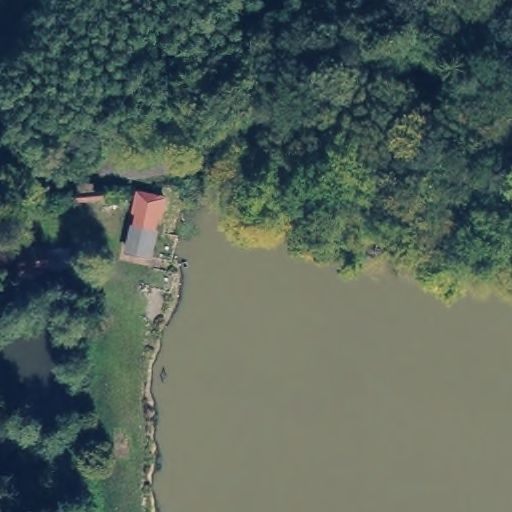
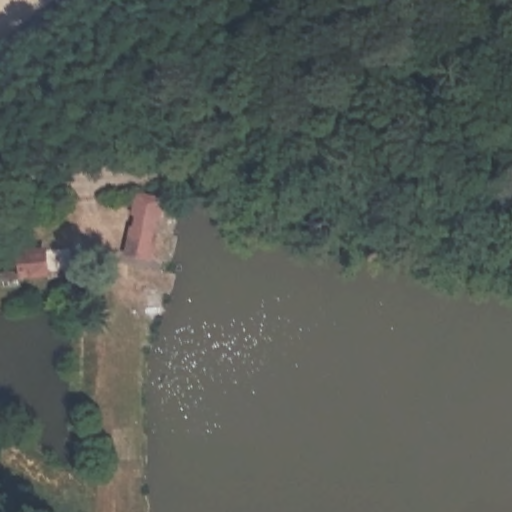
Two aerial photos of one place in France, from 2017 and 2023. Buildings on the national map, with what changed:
unchanged [(165,199),(154,259),(130,255),(145,193),(165,199)]
unchanged [(0,272),(19,270),(17,253),(50,250),(51,277),(22,279),(22,287),(1,289),(0,278),(0,272)]
unchanged [(147,284),(142,305),(117,302),(123,279),(147,284)]

